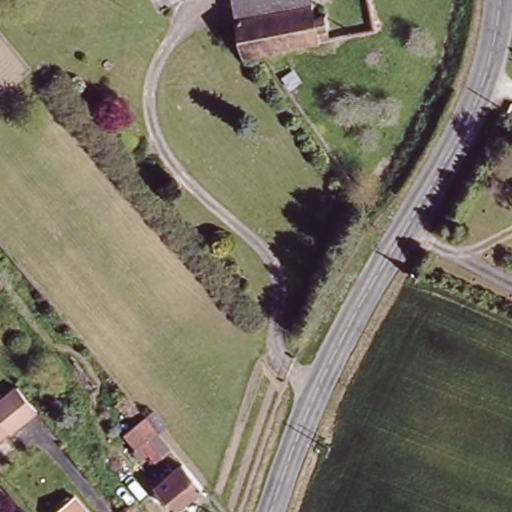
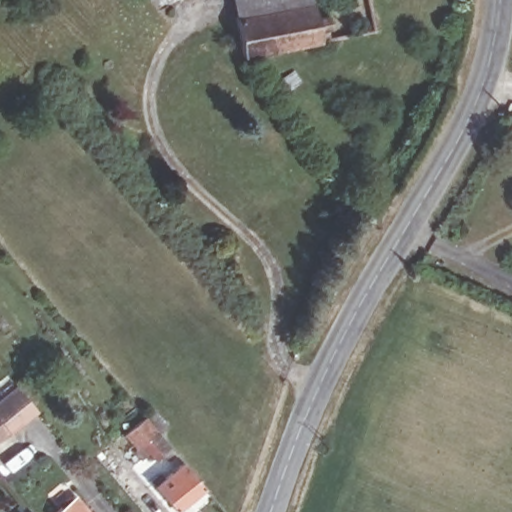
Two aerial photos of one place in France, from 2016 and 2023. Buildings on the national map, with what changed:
unchanged [(182,0),(188,0),(183,3),(182,0)]
unchanged [(311,0),(320,42),(239,55),(229,0),(311,0)]
unchanged [(30,414),(16,425),(15,424),(3,434),(0,431),(0,400),(10,391),(24,379),(43,403),(43,404),(30,414)]
unchanged [(166,424),(157,432),(176,454),(167,462),(161,455),(155,461),(148,454),(139,462),(131,451),(135,448),(123,434),(153,409),(166,424)]
unchanged [(198,485),(171,508),(152,484),(178,462),(198,485)]
unchanged [(70,501),(80,512),(57,512),(70,501)]
unchanged [(30,512),(20,512),(26,507),(30,512)]

